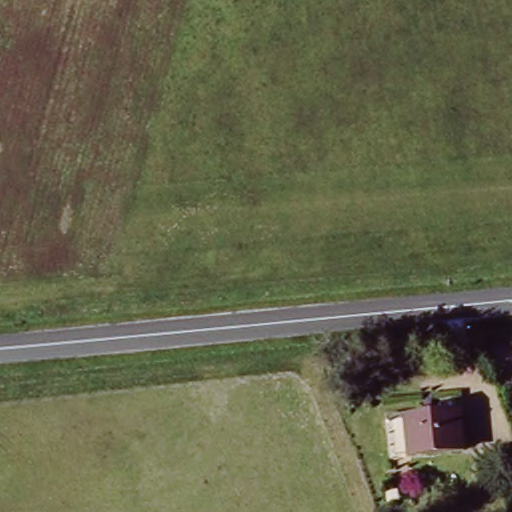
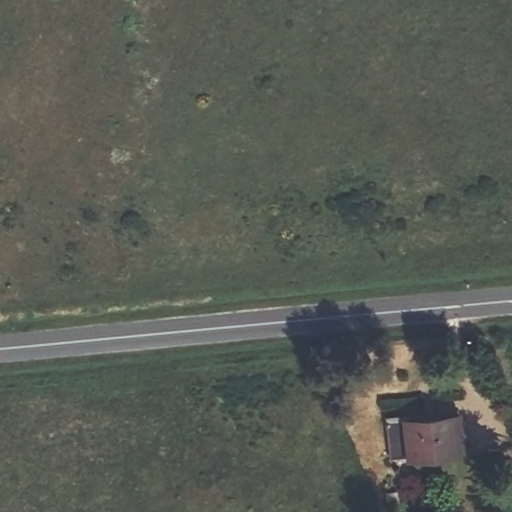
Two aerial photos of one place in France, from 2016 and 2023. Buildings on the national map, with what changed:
unchanged [(468,451),(401,454),(400,420),(425,419),(467,417),(468,451)]
unchanged [(505,450),(512,465),(512,484),(502,488),(488,457),(505,450)]

